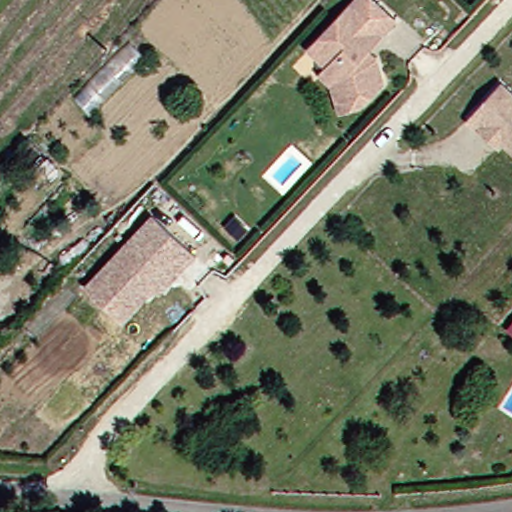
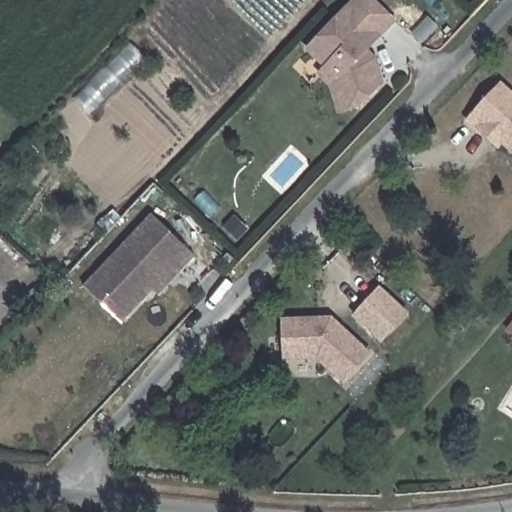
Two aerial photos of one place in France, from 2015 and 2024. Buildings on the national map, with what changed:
unchanged [(332,87),(319,75),(327,67),(308,51),(356,0),(371,0),(394,22),(379,38),(367,52),(376,60),(383,82),(361,106),(354,108),(340,112),(332,87)]
unchanged [(481,130),(469,119),(503,84),(512,92),(512,148),(504,142),(499,147),(481,130)]
unchanged [(153,288),(121,322),(85,287),(153,216),(194,256),(182,268),(158,293),(153,288)]
new [(380,289),(407,315),(383,340),(357,314),(380,289)]
new [(333,317),(371,353),(345,381),(319,356),(286,358),(284,320),(319,318),(333,317)]

